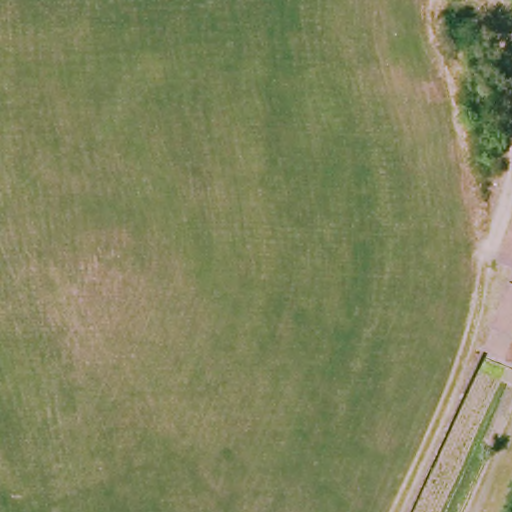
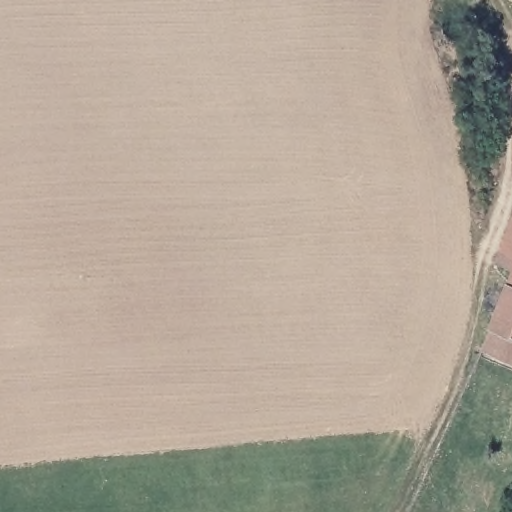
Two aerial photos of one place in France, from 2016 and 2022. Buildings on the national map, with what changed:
unchanged [(512,234),(512,272),(500,267),(512,234)]
unchanged [(512,282),(512,363),(485,352),(512,282)]

